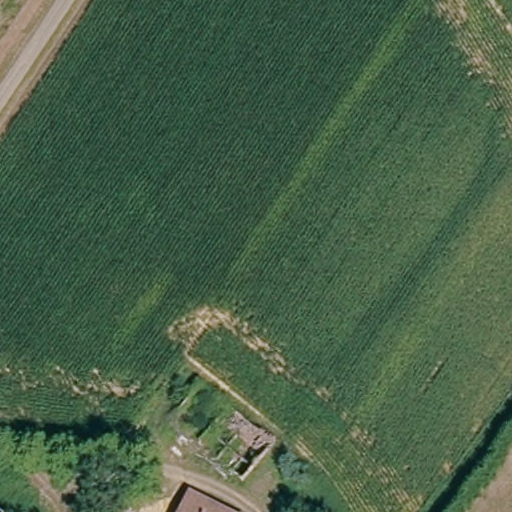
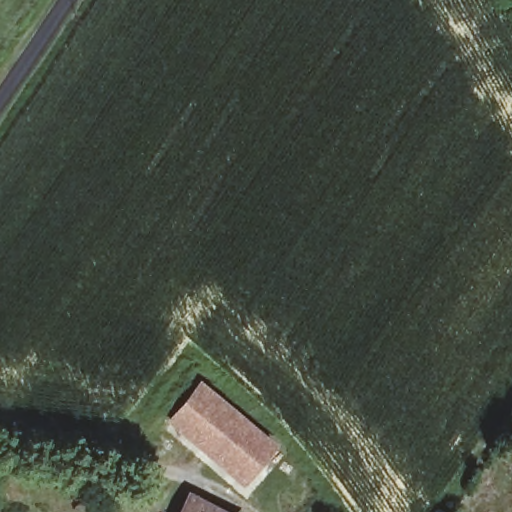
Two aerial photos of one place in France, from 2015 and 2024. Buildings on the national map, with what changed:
new [(277,445),(243,487),(165,420),(198,380),(277,445)]
unchanged [(216,512),(175,512),(182,495),(216,512)]

